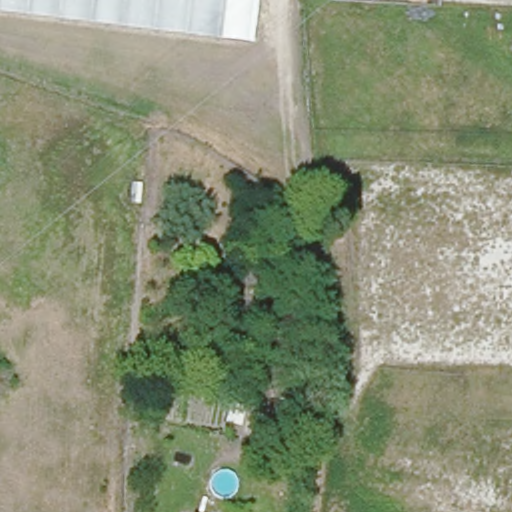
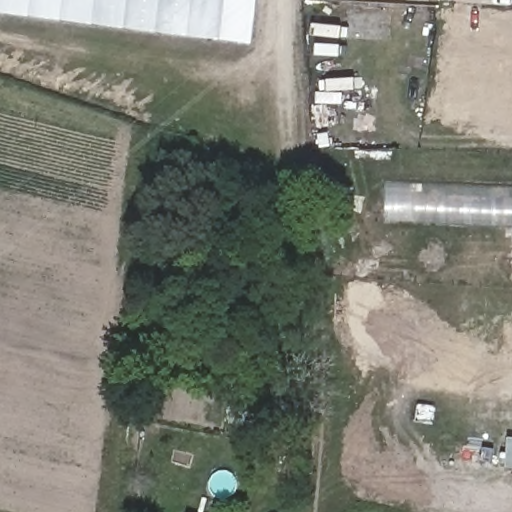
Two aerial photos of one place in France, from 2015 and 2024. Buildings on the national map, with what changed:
unchanged [(252,42),(0,12),(0,0),(257,0),(252,42)]
new [(385,182),(512,190),(512,227),(384,221),(385,182)]

